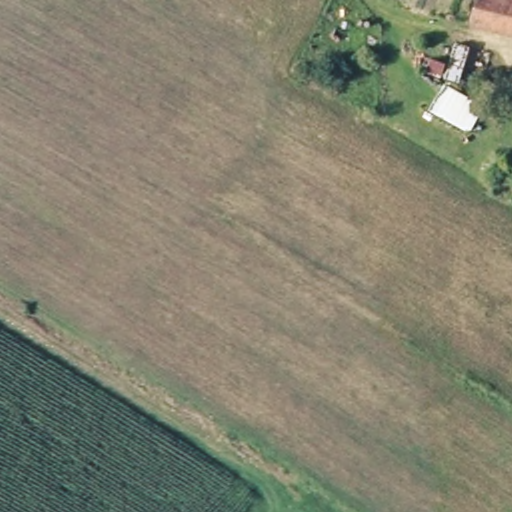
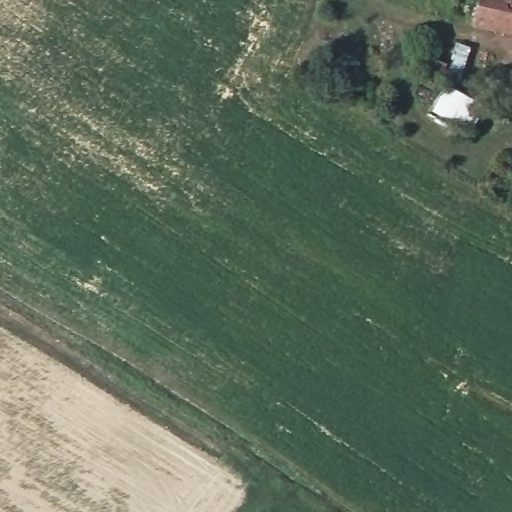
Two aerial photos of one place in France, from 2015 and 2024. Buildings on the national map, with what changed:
unchanged [(473,23),(479,0),(512,0),(512,32),(473,23)]
unchanged [(489,53),(479,87),(447,78),(457,44),(489,53)]

